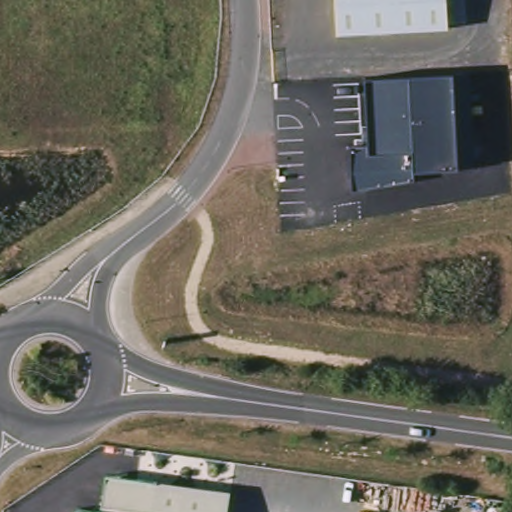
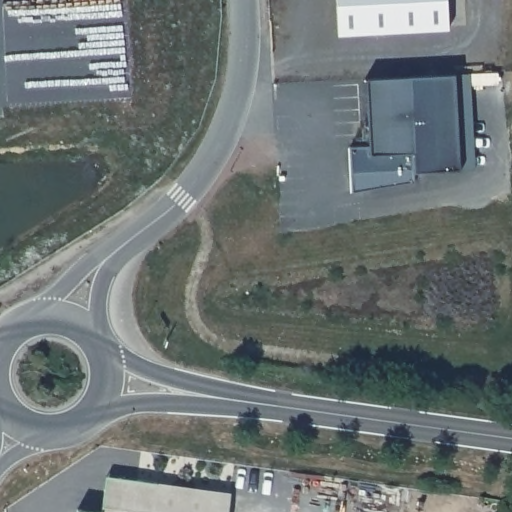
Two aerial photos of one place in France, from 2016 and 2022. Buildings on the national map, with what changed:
unchanged [(336,0),(447,0),(449,29),(339,35),(336,0)]
unchanged [(454,73),(459,167),(416,172),(415,180),(351,192),(349,144),(364,143),(364,125),(369,124),(367,78),(454,73)]
unchanged [(124,473),(236,488),(233,512),(106,512),(109,484),(124,473)]

